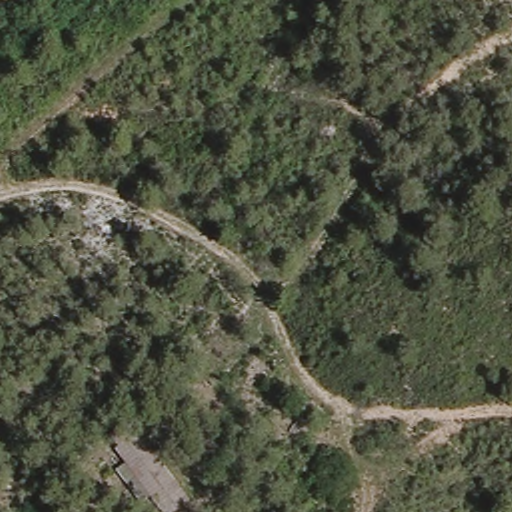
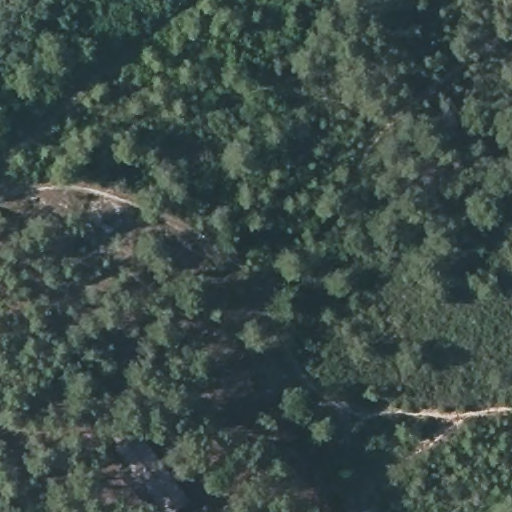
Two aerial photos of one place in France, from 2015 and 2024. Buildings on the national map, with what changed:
unchanged [(121,482),(111,466),(121,457),(104,438),(127,421),(187,502),(172,512),(159,512),(131,475),(121,482)]

